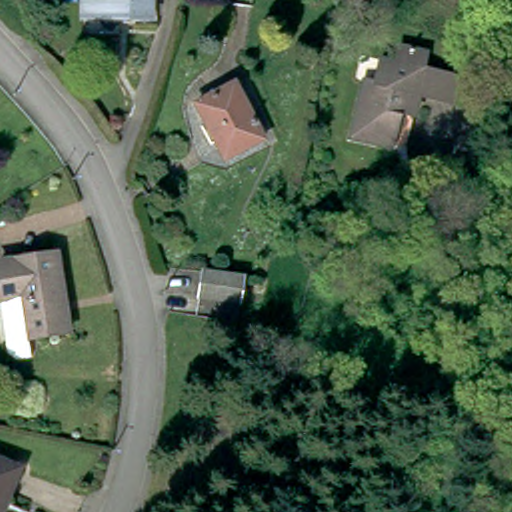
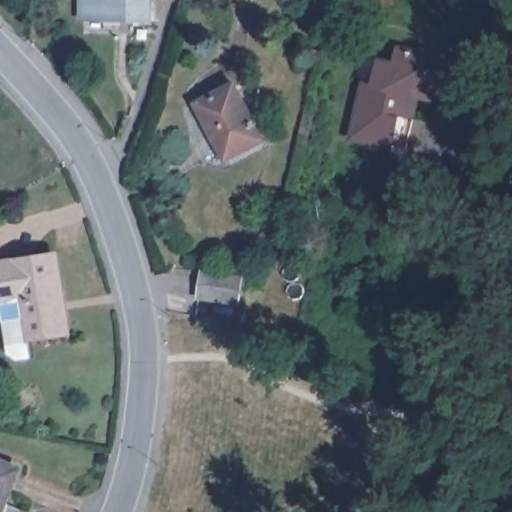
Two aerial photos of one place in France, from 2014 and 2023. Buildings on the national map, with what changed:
unchanged [(83,0),(153,0),(153,18),(83,16),(83,0)]
unchanged [(346,137),(361,78),(369,80),(374,58),(390,61),(394,45),(421,50),(418,67),(454,74),(448,100),(416,94),(412,113),(396,110),(387,147),(346,137)]
unchanged [(236,79),(264,136),(224,157),(195,100),(236,79)]
unchanged [(0,299),(0,257),(50,249),(62,325),(23,331),(5,334),(0,299)]
unchanged [(203,268),(243,274),(242,283),(238,301),(208,297),(198,295),(199,291),(203,268)]
unchanged [(20,469),(5,505),(3,512),(0,512),(0,461),(20,469)]

